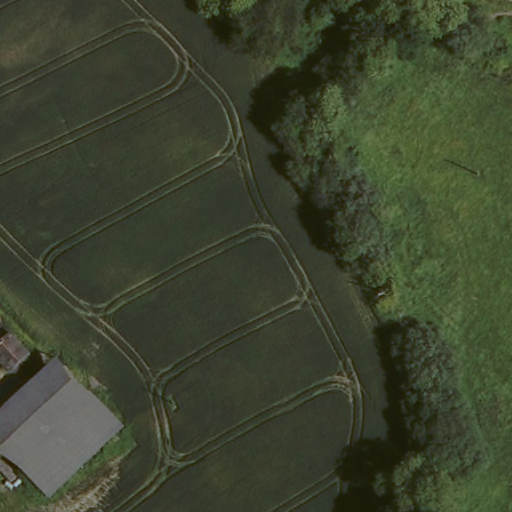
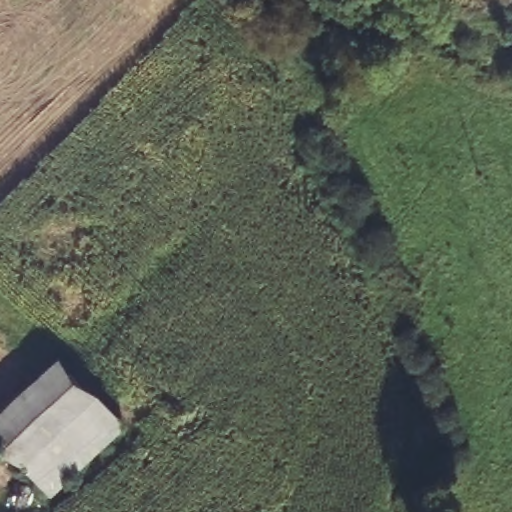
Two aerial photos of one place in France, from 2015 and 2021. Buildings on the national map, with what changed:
unchanged [(34,338),(13,357),(0,340),(0,331),(18,316),(34,338)]
unchanged [(55,351),(69,367),(124,423),(52,491),(0,437),(0,406),(52,354),(55,351)]

